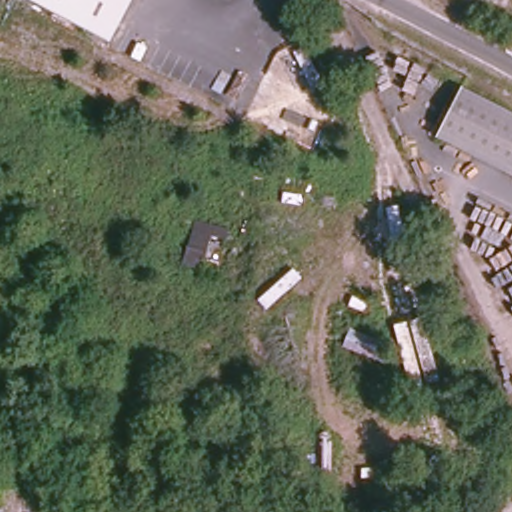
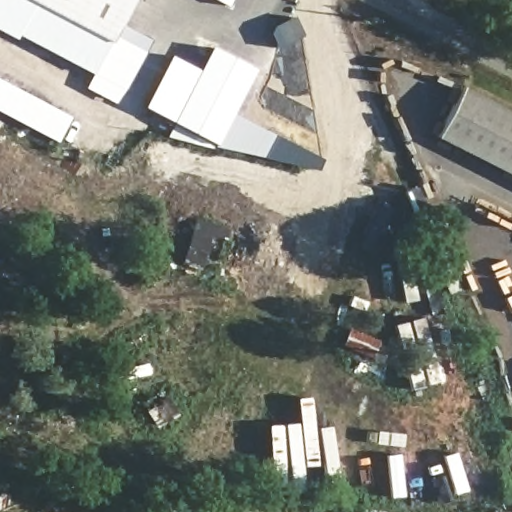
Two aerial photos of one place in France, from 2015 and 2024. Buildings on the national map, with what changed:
new [(119,25),(147,39),(114,105),(82,87),(89,74),(16,35),(14,39),(0,32),(0,0),(26,0),(108,44),(119,25)]
unchanged [(26,0),(131,0),(108,44),(26,0)]
new [(214,0),(231,0),(227,7),(214,0)]
new [(167,54),(195,69),(208,46),(252,69),(229,115),(320,158),(315,170),(212,147),(211,150),(164,136),(170,122),(140,107),(167,54)]
new [(70,116),(56,144),(0,115),(0,80),(70,116)]
unchanged [(512,175),(433,130),(455,85),(512,115),(512,175)]
unchanged [(199,221),(232,229),(229,240),(214,237),(200,276),(181,269),(199,221)]
unchanged [(379,349),(387,353),(385,365),(373,361),(372,365),(344,355),(352,330),(381,341),(379,349)]

